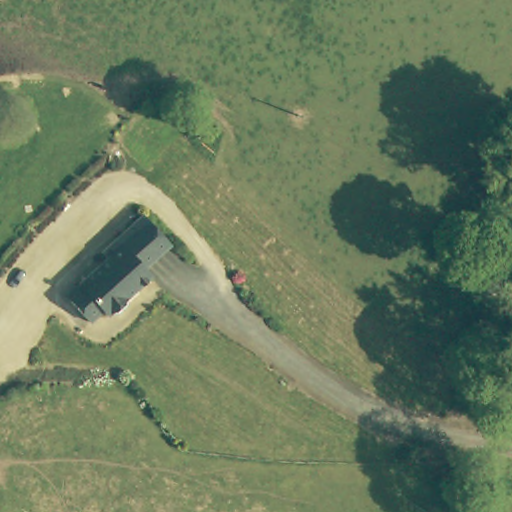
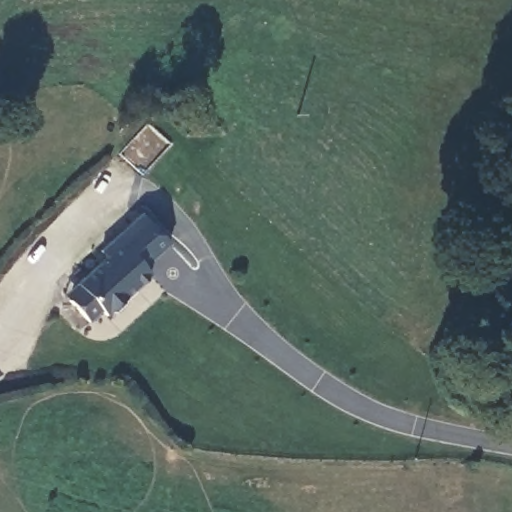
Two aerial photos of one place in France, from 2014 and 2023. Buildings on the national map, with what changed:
unchanged [(75,279),(106,253),(99,245),(141,209),(169,240),(143,263),(150,271),(126,292),(125,301),(115,310),(111,309),(108,310),(105,312),(101,306),(89,317),(67,295),(63,290),(75,279)]

